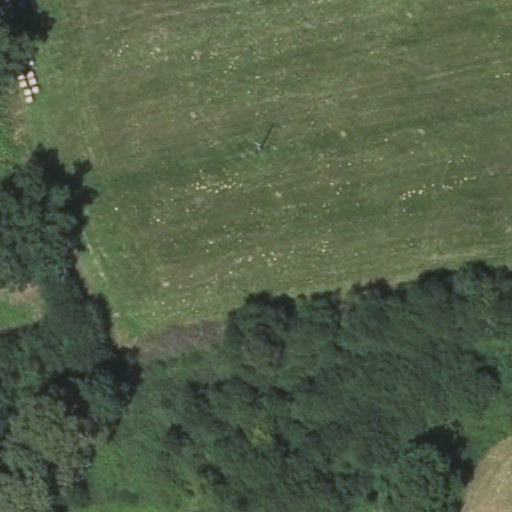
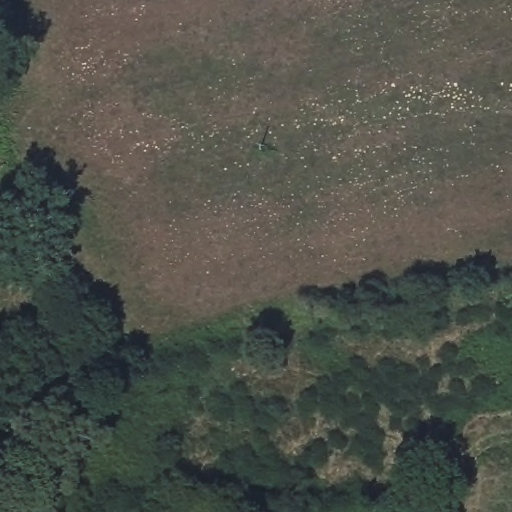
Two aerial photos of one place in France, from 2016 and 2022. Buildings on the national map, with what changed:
[]

